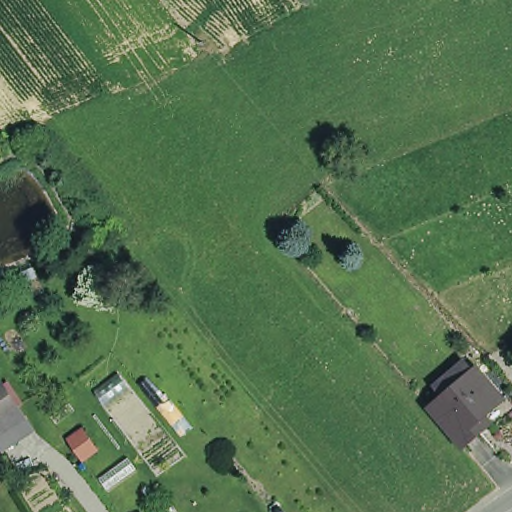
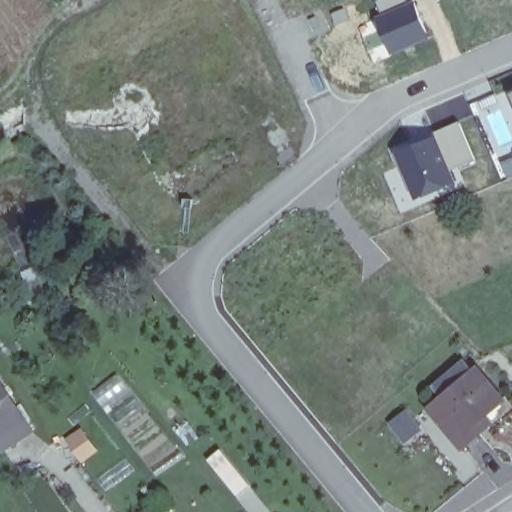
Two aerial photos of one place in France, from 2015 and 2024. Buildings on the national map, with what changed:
new [(412,4),(425,35),(386,51),(374,22),(378,20),(374,0),(375,0),(406,0),(408,4),(412,4)]
new [(505,96),(512,94),(512,113),(505,96)]
new [(472,161),(450,171),(455,185),(405,204),(387,152),(460,121),(472,161)]
unchanged [(440,328),(431,337),(425,331),(435,322),(440,328)]
unchanged [(503,400),(485,416),(490,424),(463,446),(431,408),(477,370),(503,400)]
unchanged [(17,407),(0,418),(0,387),(3,385),(17,407)]
new [(420,431),(398,445),(382,425),(403,409),(420,431)]
new [(208,460),(222,449),(251,486),(237,497),(208,460)]

